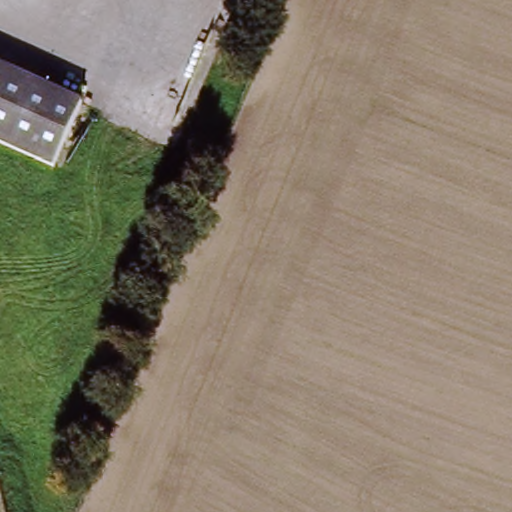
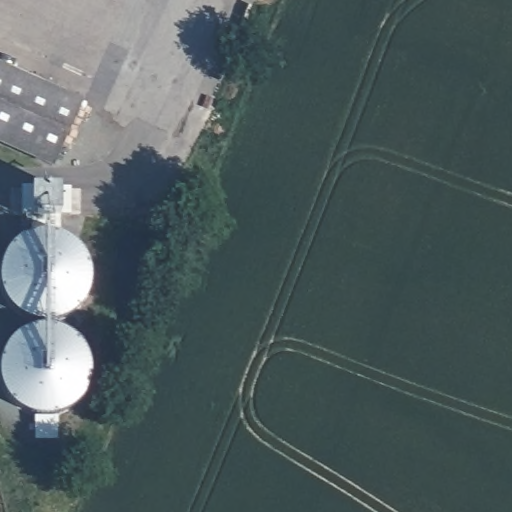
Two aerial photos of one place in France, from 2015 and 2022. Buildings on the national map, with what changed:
unchanged [(83,95),(58,160),(0,137),(0,62),(83,95)]
new [(37,231),(50,230),(83,251),(90,267),(92,283),(87,300),(76,314),(65,321),(54,322),(55,327),(69,331),(78,338),(86,349),(92,364),(93,375),(87,395),(71,410),(57,416),(36,417),(17,407),(4,392),(0,379),(0,365),(2,358),(10,341),(22,330),(37,325),(37,322),(24,319),(11,308),(0,293),(0,271),(3,256),(12,244),(28,234),(37,231)]

